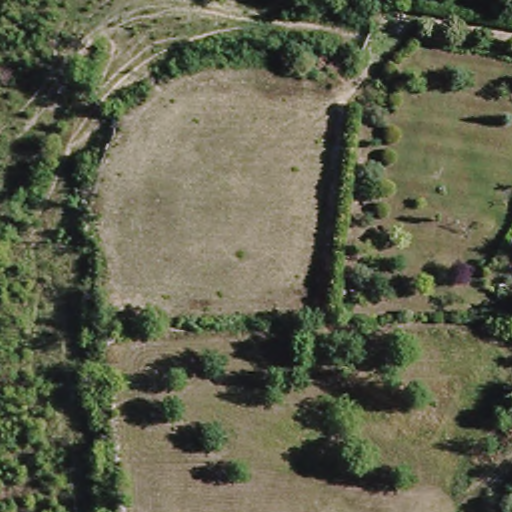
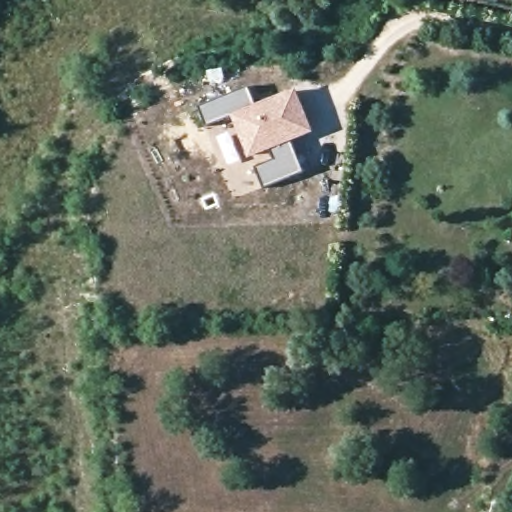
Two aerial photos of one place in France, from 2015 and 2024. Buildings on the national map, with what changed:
new [(247,90),(253,105),(293,90),(312,133),(290,142),(302,170),(262,186),(255,168),(273,160),(269,150),(248,159),(228,116),(205,125),(198,108),(247,90)]

